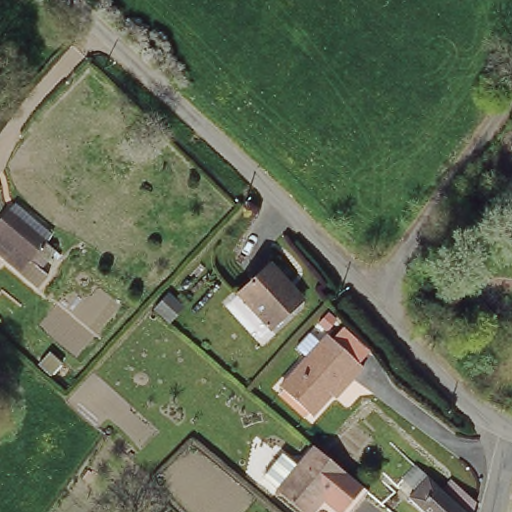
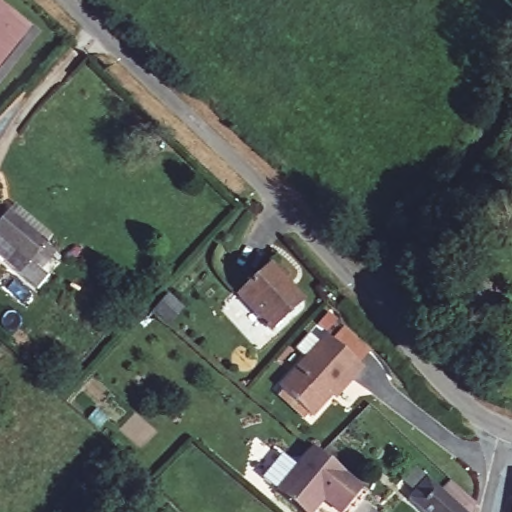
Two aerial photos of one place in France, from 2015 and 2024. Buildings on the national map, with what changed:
new [(29,32),(0,68),(0,9),(29,32)]
unchanged [(0,267),(0,226),(5,219),(8,216),(12,211),(49,245),(45,248),(42,252),(25,270),(15,280),(0,267)]
unchanged [(433,245),(455,267),(446,280),(422,264),(433,245)]
unchanged [(238,299),(269,264),(287,280),(305,295),(300,300),(274,330),(238,299)]
unchanged [(444,281),(462,287),(455,310),(437,303),(444,281)]
unchanged [(328,334),(365,364),(355,376),(350,373),(338,387),(307,358),(328,334)]
unchanged [(314,414),(282,388),(307,358),(338,387),(314,414)]
unchanged [(336,510),(317,496),(315,493),(299,512),(298,512),(270,489),(257,477),(269,463),(271,465),(277,466),(282,459),(290,466),(307,446),(322,458),(337,470),(350,481),(355,486),(336,510)]
unchanged [(428,483),(459,512),(419,512),(410,503),(428,483)]
unchanged [(463,512),(450,499),(457,491),(459,489),(477,505),(476,510),(476,512),(463,512)]
unchanged [(386,511),(386,512),(383,512),(379,508),(380,506),(384,502),(389,508),(386,511)]

